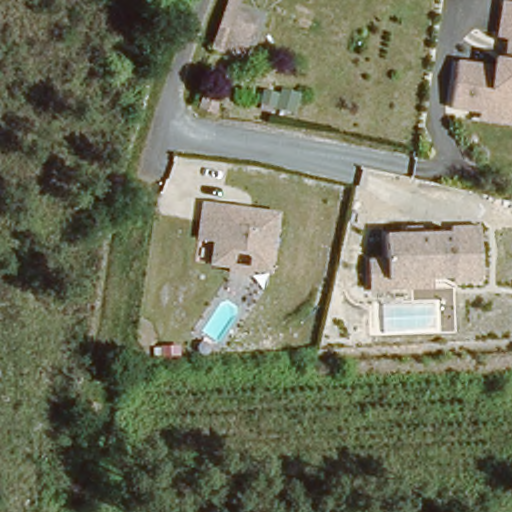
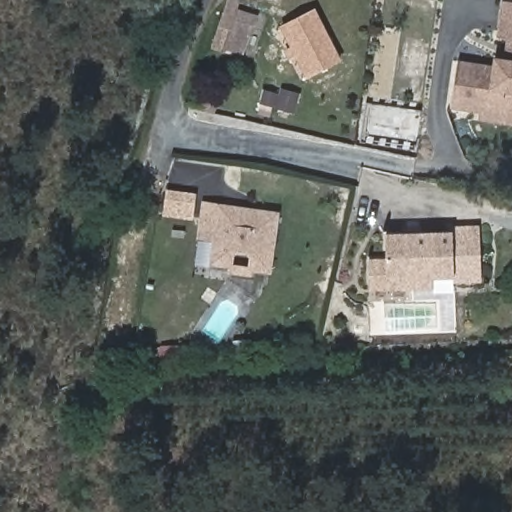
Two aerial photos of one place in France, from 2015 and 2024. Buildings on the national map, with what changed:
unchanged [(242,53),(217,42),(236,0),(239,0),(244,2),(240,9),(258,17),(242,53)]
unchanged [(449,112),(455,65),(501,71),(501,68),(503,51),(493,49),(499,0),(512,0),(512,120),(498,118),(492,118),(478,116),(449,112)]
new [(315,8),(342,61),(307,78),(296,58),(290,61),(283,48),(289,45),(278,27),(315,8)]
unchanged [(210,116),(191,107),(197,92),(217,101),(210,116)]
unchanged [(231,271),(232,265),(211,263),(212,240),(197,239),(199,204),(235,206),(240,211),(247,212),(247,207),(274,209),(270,267),(249,266),(249,272),(231,271)]
unchanged [(431,289),(368,289),(367,259),(385,259),(385,233),(405,233),(405,227),(420,227),(420,233),(451,233),(451,228),(478,228),(479,278),(479,283),(451,283),(451,288),(431,289)]

